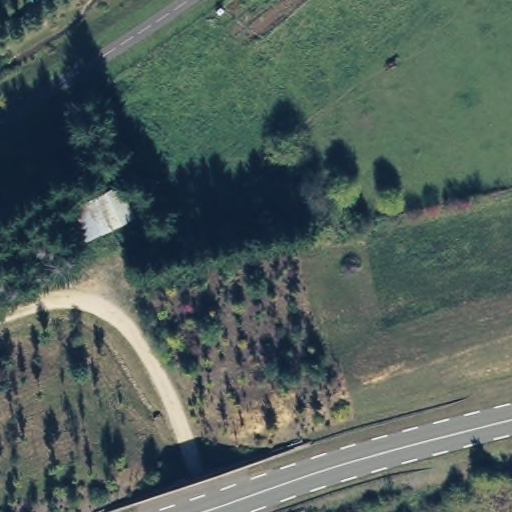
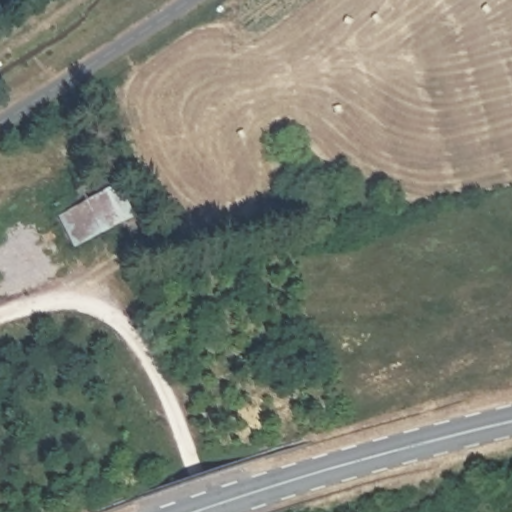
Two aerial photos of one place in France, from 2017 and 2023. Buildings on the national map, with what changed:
unchanged [(132,216),(111,226),(87,238),(73,210),(117,186),(132,216)]

